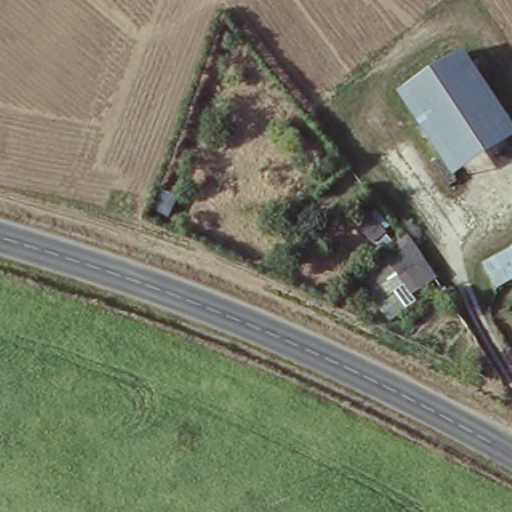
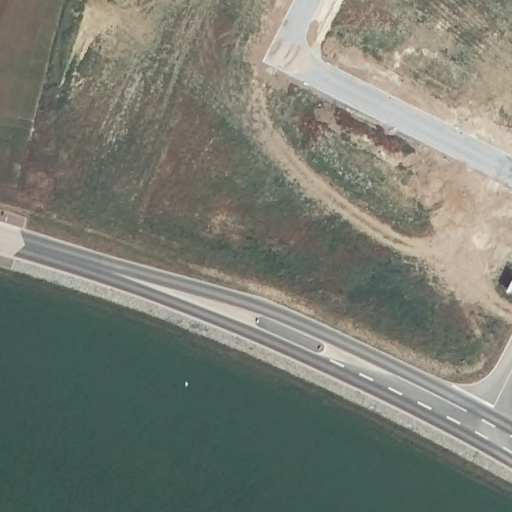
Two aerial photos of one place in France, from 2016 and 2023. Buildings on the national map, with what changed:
demolished [(512,147),(452,178),(401,91),(469,51),(512,124),(512,147)]
unchanged [(439,282),(416,297),(381,250),(376,243),(355,223),(371,208),(392,229),(388,234),(394,244),(407,235),(439,282)]

